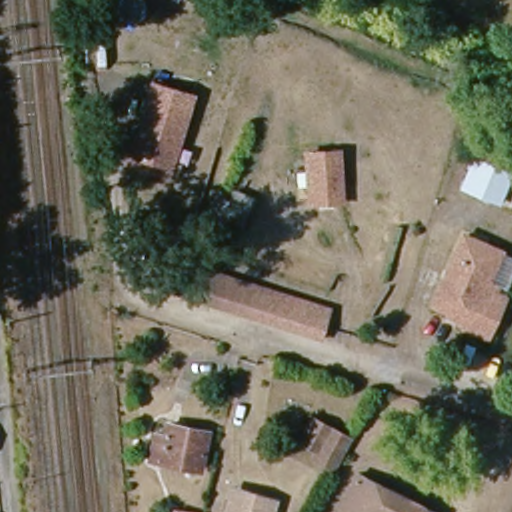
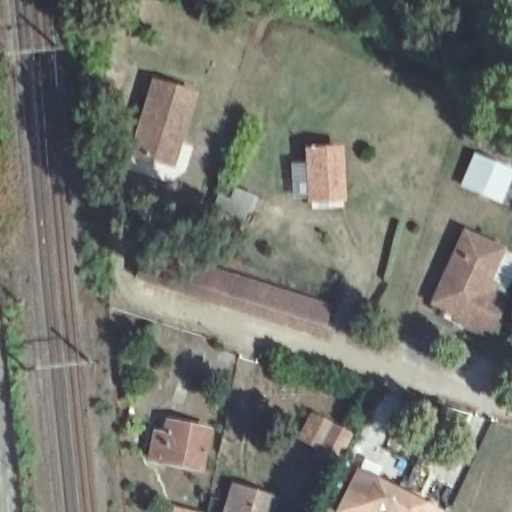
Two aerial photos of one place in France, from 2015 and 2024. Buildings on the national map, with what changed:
unchanged [(161,164),(121,151),(143,80),(184,92),(161,164)]
unchanged [(332,193),(304,195),(301,150),(329,147),(332,193)]
unchanged [(234,219),(215,212),(224,188),(243,195),(234,219)]
unchanged [(491,303),(487,312),(471,341),(448,330),(452,323),(418,306),(453,239),(489,257),(474,287),(482,291),(480,297),(491,303)]
unchanged [(164,252),(339,307),(330,335),(155,280),(143,277),(152,249),(164,252)]
unchanged [(202,467),(153,457),(157,433),(167,435),(169,423),(210,432),(202,467)]
unchanged [(335,464),(315,453),(331,425),(350,436),(335,464)]
unchanged [(409,498),(402,512),(338,512),(357,472),(409,498)]
unchanged [(232,492),(235,482),(247,486),(271,493),(278,495),(275,506),(273,512),(226,512),(232,492)]
unchanged [(176,507),(208,512),(175,512),(176,507)]

